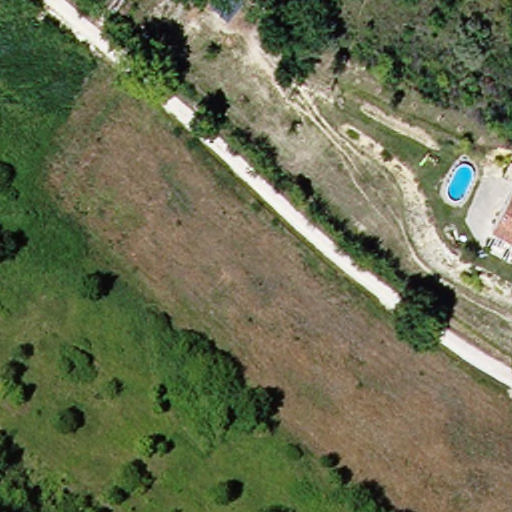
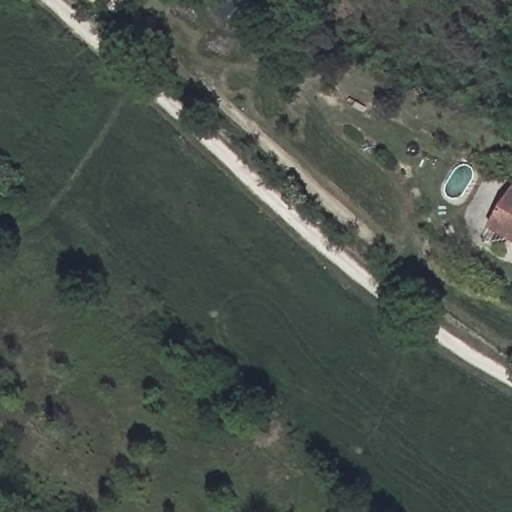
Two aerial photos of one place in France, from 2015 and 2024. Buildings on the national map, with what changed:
unchanged [(492,221),(512,188),(512,232),(492,221)]

